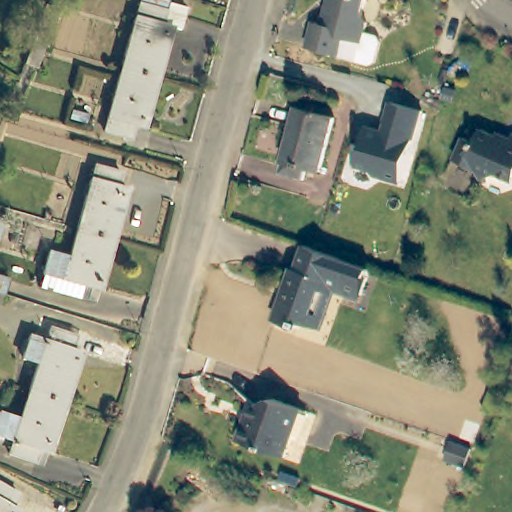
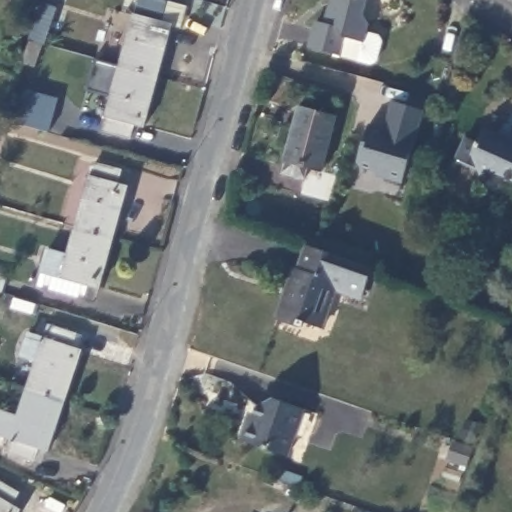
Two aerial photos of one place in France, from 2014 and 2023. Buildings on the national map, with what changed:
unchanged [(137,1),(138,0),(163,0),(165,0),(175,4),(182,6),(176,27),(168,25),(155,75),(118,65),(132,13),(134,14),(137,1)]
unchanged [(308,44),(315,19),(323,20),(327,6),(332,3),(333,0),(364,0),(361,9),(366,19),(363,29),(376,32),(380,37),(374,57),(368,60),(355,57),(337,52),(308,44)]
unchanged [(41,6),(56,10),(45,46),(30,41),(39,12),(41,6)]
unchanged [(27,45),(39,48),(31,69),(20,64),(27,45)]
unchanged [(131,121),(127,135),(102,128),(106,114),(105,113),(118,65),(155,75),(140,124),(131,121)]
new [(29,94),(59,102),(49,136),(19,128),(29,94)]
unchanged [(398,187),(372,179),(370,174),(356,170),(354,166),(365,129),(391,137),(393,131),(386,129),(384,124),(390,105),(421,115),(398,187)]
unchanged [(337,119),(322,174),(310,170),(307,182),(285,176),(287,165),(285,165),(299,109),(337,119)]
unchanged [(480,128),(508,140),(512,131),(512,180),(496,174),(480,180),(475,167),(454,159),(463,138),(475,142),(480,128)]
unchanged [(74,230),(89,179),(93,165),(117,174),(114,186),(124,190),(110,240),(74,230)]
unchanged [(61,278),(39,272),(45,251),(65,257),(74,230),(110,240),(95,288),(87,286),(82,300),(57,292),(61,278)]
unchanged [(302,325),(300,331),(277,323),(295,271),(298,272),(305,250),(317,254),(371,272),(361,301),(332,292),(320,331),(302,325)]
unchanged [(30,390),(39,362),(24,358),(30,336),(47,341),(51,327),(76,336),(72,350),(82,352),(65,402),(30,390)]
unchanged [(30,390),(65,402),(50,451),(40,448),(35,461),(10,451),(14,439),(0,434),(0,412),(20,419),(30,390)]
unchanged [(247,421),(254,423),(260,404),(280,399),(307,410),(290,456),(241,440),(247,421)]
unchanged [(19,493),(12,506),(21,510),(20,512),(0,512),(0,483),(19,493)]

